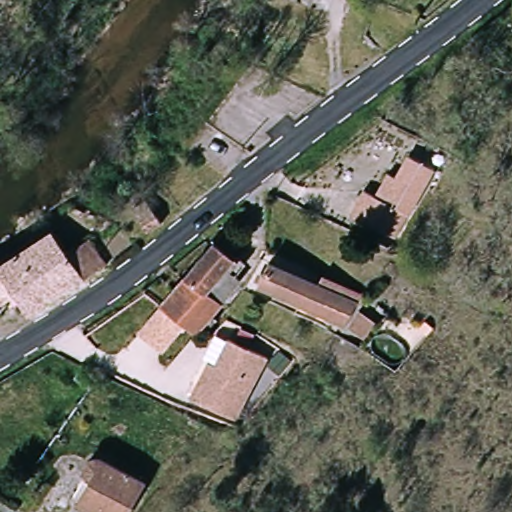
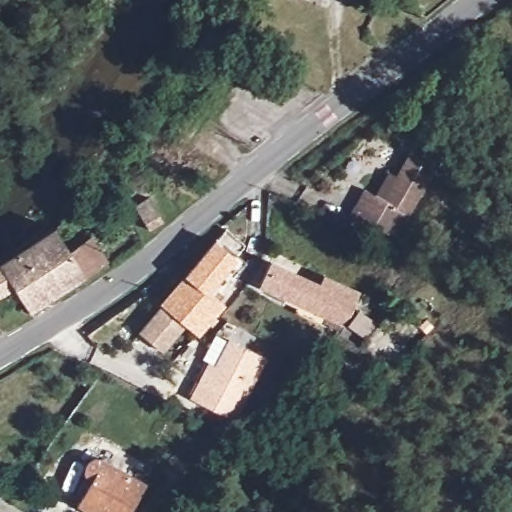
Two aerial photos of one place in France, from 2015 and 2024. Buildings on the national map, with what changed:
unchanged [(437,166),(398,237),(353,213),(367,189),(378,194),(392,170),(400,175),(412,153),(437,166)]
unchanged [(171,220),(157,229),(144,206),(158,197),(171,220)]
unchanged [(227,225),(248,242),(240,252),(248,260),(237,273),(229,266),(209,290),(188,273),(227,225)]
unchanged [(107,258),(30,311),(20,297),(2,310),(0,308),(0,266),(56,228),(68,247),(90,232),(107,258)]
unchanged [(343,329),(255,286),(267,262),(311,282),(316,272),(322,276),(358,293),(343,329)]
unchanged [(221,317),(215,326),(206,318),(196,332),(163,303),(188,273),(209,290),(224,302),(215,313),(221,317)]
unchanged [(187,325),(164,352),(138,332),(163,303),(187,325)]
unchanged [(348,328),(357,310),(367,315),(373,317),(362,334),(357,332),(348,328)]
unchanged [(257,387),(241,423),(193,402),(200,387),(210,365),(217,367),(222,357),(229,340),(270,357),(257,387)]
unchanged [(93,470),(93,467),(95,463),(97,462),(98,460),(102,458),(105,458),(152,487),(136,512),(94,512),(77,502),(94,474),(93,472),(93,470)]

